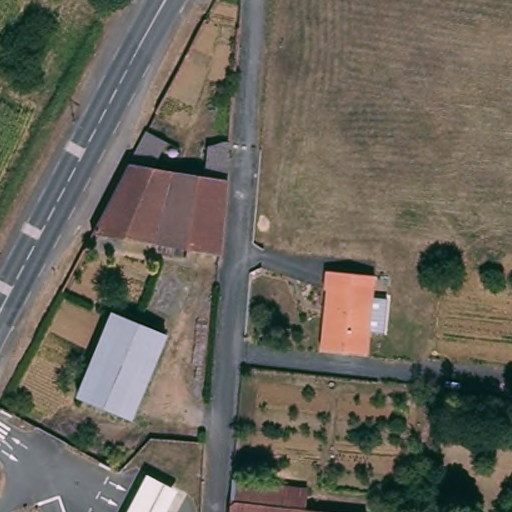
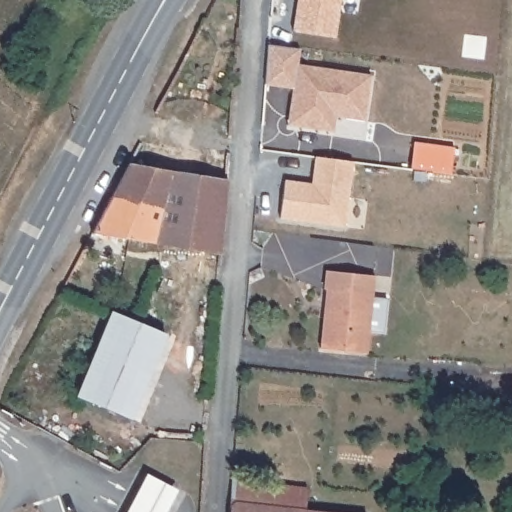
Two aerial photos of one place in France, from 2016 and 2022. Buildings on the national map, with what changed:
new [(269,41),(298,45),(296,60),(369,71),(363,117),(333,113),(331,127),(287,121),(292,85),(266,81),(269,41)]
new [(285,181),(312,185),(316,157),(354,162),(345,228),(280,219),(285,181)]
unchanged [(189,172),(232,179),(225,254),(171,245),(140,241),(97,234),(134,163),(189,172)]
unchanged [(327,266),(375,271),(368,351),(322,346),(325,313),(327,286),(325,286),(327,266)]
unchanged [(76,396),(111,312),(136,322),(165,335),(130,417),(104,407),(76,396)]
unchanged [(139,488),(147,474),(177,490),(166,512),(128,512),(139,488)]
unchanged [(238,484),(307,491),(305,512),(236,503),(238,484)]
unchanged [(236,503),(305,512),(231,512),(231,509),(236,503)]

